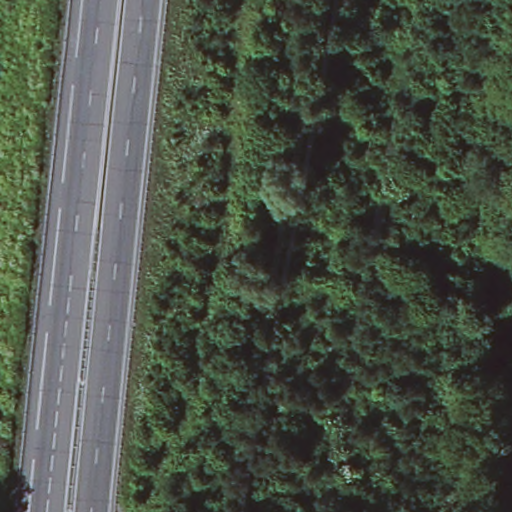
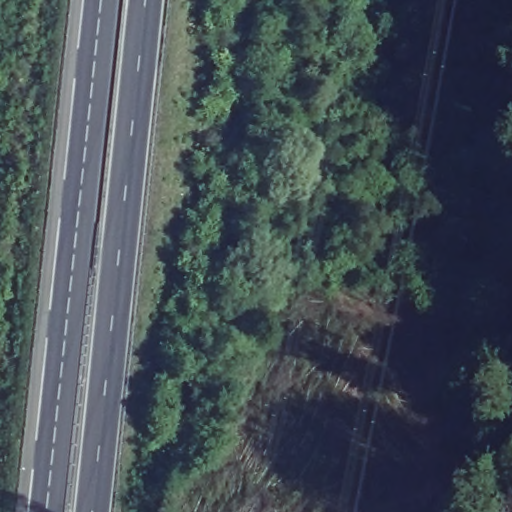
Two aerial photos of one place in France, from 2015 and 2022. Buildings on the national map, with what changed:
[]

